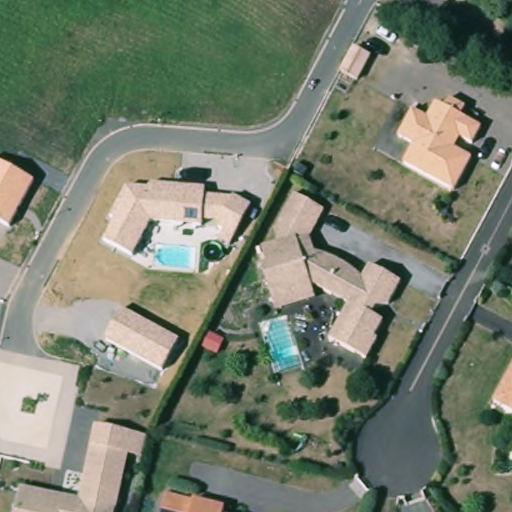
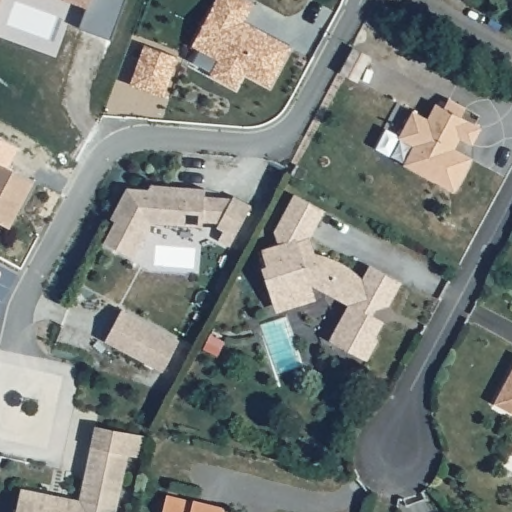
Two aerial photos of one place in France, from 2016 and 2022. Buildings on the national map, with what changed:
new [(270,87),(244,73),(235,88),(210,73),(217,58),(192,43),(213,0),(250,0),(255,3),(245,21),(292,47),(270,87)]
new [(164,96),(129,86),(143,43),(177,56),(164,96)]
unchanged [(409,111),(426,116),(432,103),(442,106),(447,99),(463,106),(460,116),(480,126),(472,143),(460,138),(455,153),(470,159),(453,190),(400,167),(411,145),(397,135),(409,111)]
unchanged [(0,163),(35,182),(8,228),(0,224),(0,163)]
unchanged [(103,242),(115,220),(110,217),(125,187),(149,189),(150,183),(205,187),(204,195),(235,196),(252,206),(228,245),(217,239),(224,230),(216,226),(220,222),(201,220),(200,227),(150,223),(132,258),(103,242)]
unchanged [(325,211),(311,239),(314,254),(330,256),(345,263),(362,276),(368,265),(396,280),(360,356),(326,339),(345,303),(312,286),(300,287),(303,306),(273,310),(270,289),(263,288),(260,266),(265,263),(260,250),(276,244),(272,233),(290,193),(325,211)]
unchanged [(104,340),(121,309),(179,341),(160,371),(104,340)]
unchanged [(493,404),(512,365),(512,412),(493,404)]
unchanged [(77,500),(94,427),(144,436),(140,459),(125,457),(114,512),(15,512),(20,488),(77,500)]
unchanged [(189,502),(191,498),(220,507),(219,512),(159,512),(164,493),(189,502)]

